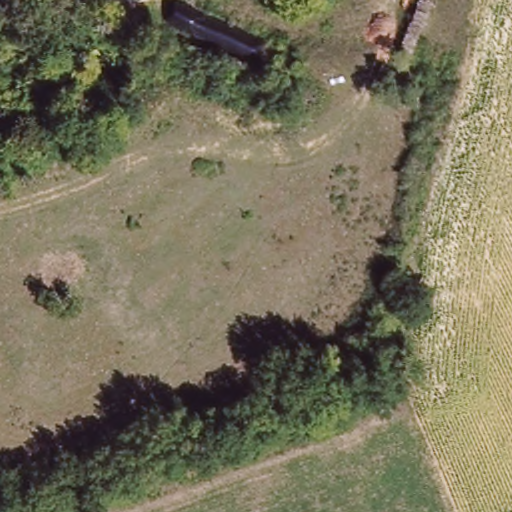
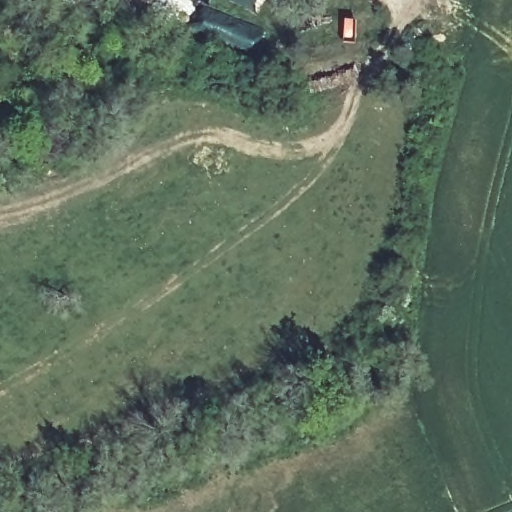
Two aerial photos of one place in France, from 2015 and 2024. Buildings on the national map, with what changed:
unchanged [(82,0),(77,11),(49,0),(82,0)]

